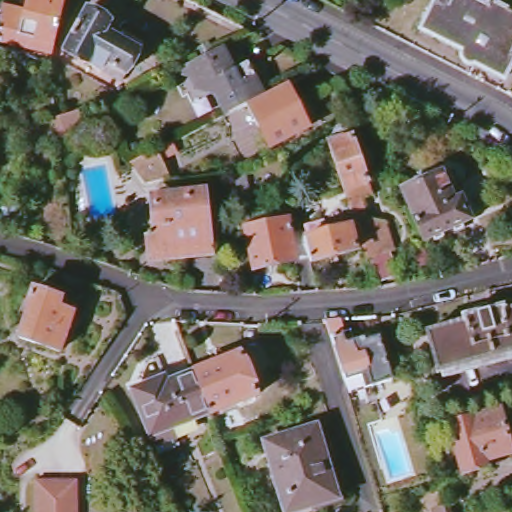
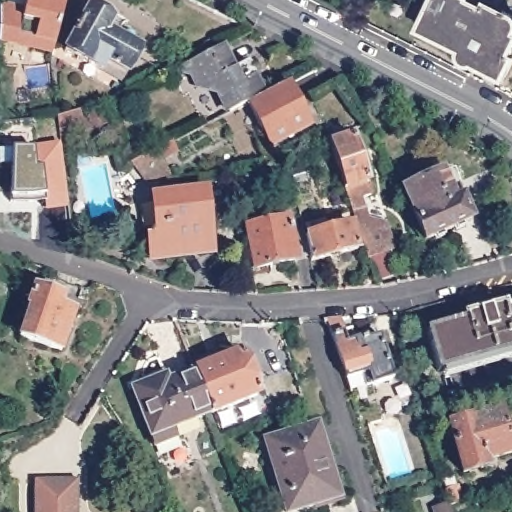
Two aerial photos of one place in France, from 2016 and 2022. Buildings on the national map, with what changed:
unchanged [(1,11),(23,15),(27,0),(66,0),(52,56),(0,43),(1,11)]
unchanged [(473,67),(472,67),(471,68),(468,68),(466,67),(463,66),(461,64),(460,63),(460,61),(460,60),(460,59),(460,57),(461,56),(461,54),(421,32),(439,0),(468,0),(473,3),(472,5),(484,11),(486,7),(512,20),(512,56),(511,57),(512,57),(512,67),(505,81),(475,66),(473,67)]
unchanged [(64,55),(68,47),(86,15),(89,16),(96,13),(107,19),(107,28),(142,48),(120,87),(64,55)]
unchanged [(223,46),(235,69),(248,62),(265,94),(247,103),(230,112),(214,81),(200,88),(186,63),(223,46)]
unchanged [(265,94),(287,83),(309,127),(270,146),(247,103),(265,94)]
unchanged [(79,110),(87,127),(60,138),(58,116),(79,110)]
unchanged [(329,143),(352,136),(371,194),(358,198),(363,215),(381,222),(391,251),(368,258),(329,143)]
new [(45,212),(43,201),(10,200),(12,152),(34,149),(58,144),(70,211),(45,212)]
unchanged [(161,147),(169,174),(147,181),(133,161),(161,147)]
unchanged [(402,190),(450,168),(473,220),(425,242),(402,190)]
unchanged [(151,234),(160,233),(156,201),(206,197),(211,250),(153,256),(151,234)]
unchanged [(240,214),(245,213),(246,215),(269,211),(270,221),(285,218),(289,232),(302,230),(304,235),(310,256),(251,269),(240,214)]
unchanged [(310,256),(304,235),(306,234),(304,224),(325,219),(327,231),(351,225),(357,249),(310,261),(310,256)]
unchanged [(20,338),(31,308),(29,307),(35,290),(63,299),(60,309),(75,314),(61,352),(20,338)]
unchanged [(465,321),(463,315),(505,305),(505,309),(512,309),(512,354),(460,366),(438,372),(427,330),(465,321)]
unchanged [(326,320),(338,319),(343,332),(351,329),(355,340),(366,337),(367,340),(380,336),(393,379),(348,393),(326,320)]
unchanged [(210,408),(193,366),(241,349),(257,391),(210,409),(210,408)]
unchanged [(210,408),(210,409),(175,423),(176,429),(151,438),(132,384),(141,381),(138,374),(165,364),(169,375),(193,366),(210,408)]
unchanged [(449,423),(499,409),(511,453),(485,460),(487,467),(462,474),(449,423)]
unchanged [(315,425),(326,462),(321,463),(330,499),(292,512),(285,512),(266,441),(315,425)]
unchanged [(83,512),(40,512),(41,475),(84,476),(83,512)]
unchanged [(441,478),(452,476),(455,485),(457,484),(461,498),(455,503),(449,505),(441,478)]

